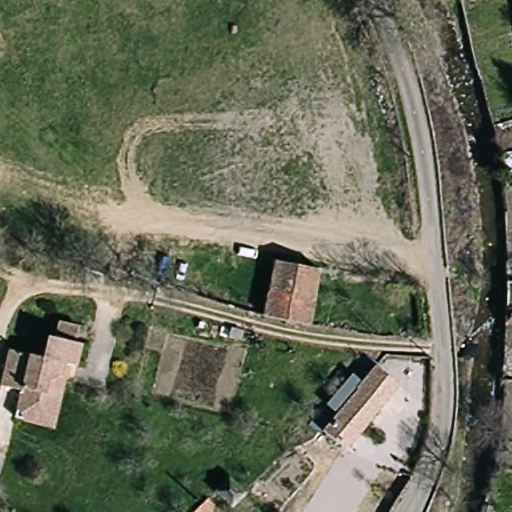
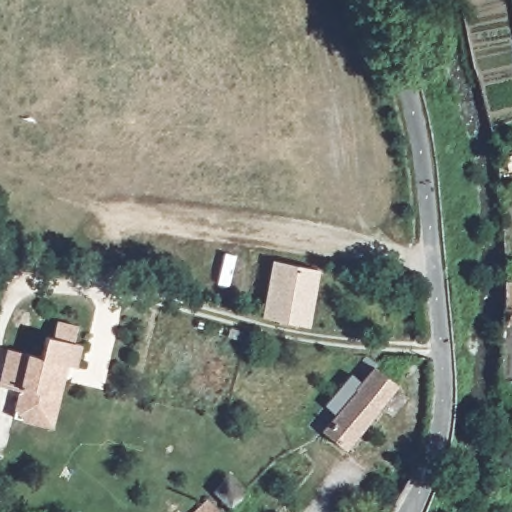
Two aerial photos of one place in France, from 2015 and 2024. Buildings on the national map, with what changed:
unchanged [(303,325),(263,312),(264,312),(276,265),(313,270),(303,325)]
unchanged [(52,338),(59,321),(77,325),(75,343),(52,338)]
unchanged [(16,420),(20,390),(1,385),(7,353),(41,358),(46,336),(83,345),(79,370),(68,368),(51,429),(16,420)]
unchanged [(346,448),(325,432),(376,368),(397,385),(346,448)]
unchanged [(215,495),(226,484),(243,498),(231,510),(215,495)]
unchanged [(203,501),(216,512),(190,512),(203,501)]

